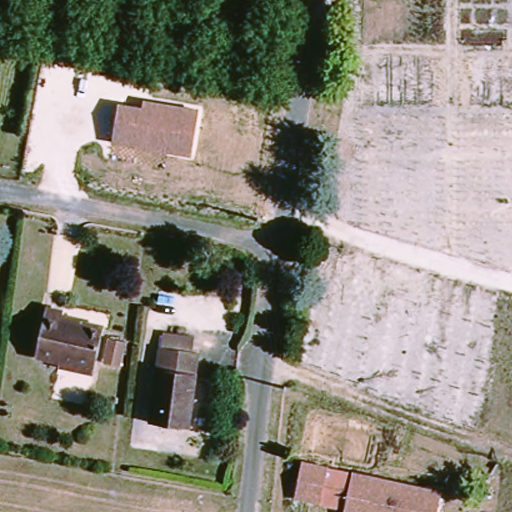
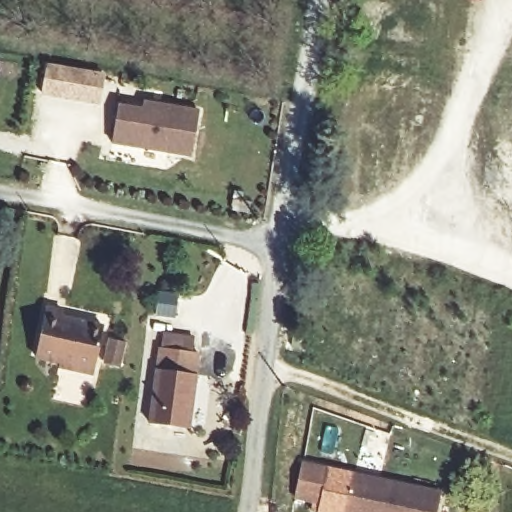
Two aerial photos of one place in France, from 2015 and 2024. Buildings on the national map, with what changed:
new [(98,104),(67,98),(40,94),(45,67),(71,72),(102,77),(98,104)]
unchanged [(198,110),(192,157),(112,143),(119,104),(142,107),(143,101),(198,110)]
unchanged [(35,357),(47,308),(65,313),(64,321),(105,331),(95,377),(60,370),(62,364),(35,357)]
unchanged [(198,346),(192,423),(152,420),(158,342),(198,346)]
unchanged [(345,507),(295,497),(302,460),(352,471),(443,491),(439,512),(344,512),(345,507)]

